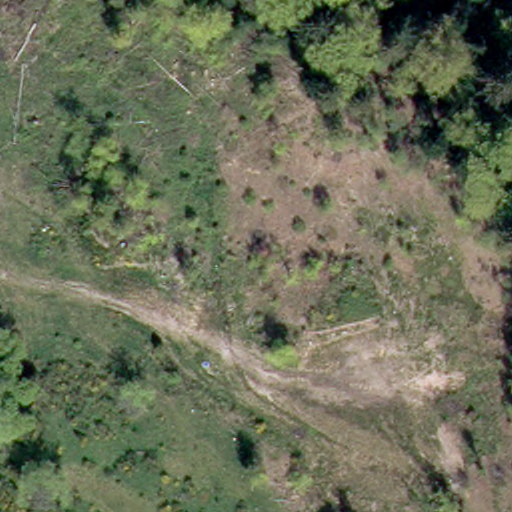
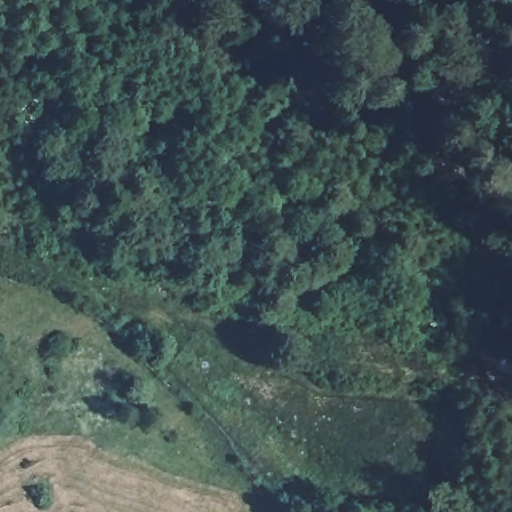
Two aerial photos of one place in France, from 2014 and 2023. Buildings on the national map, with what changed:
[]

